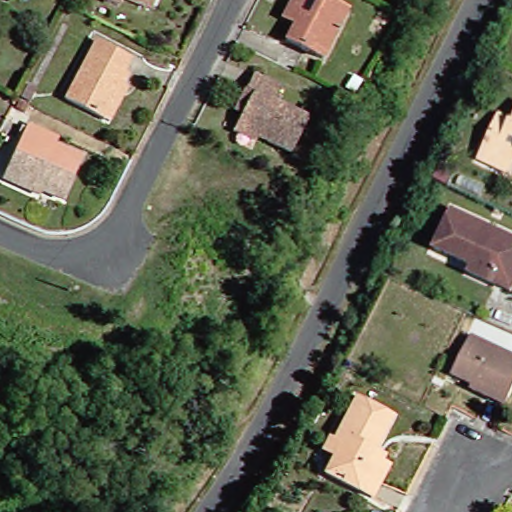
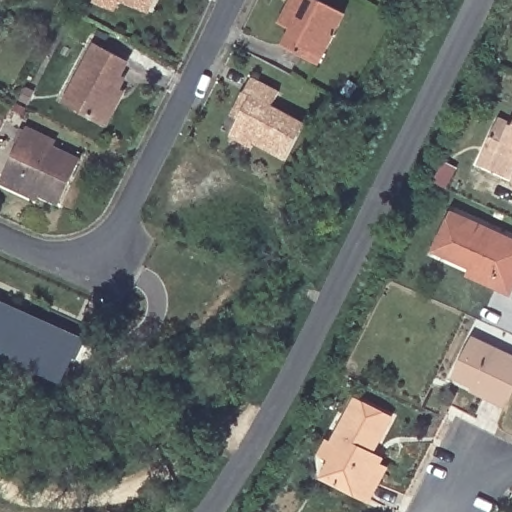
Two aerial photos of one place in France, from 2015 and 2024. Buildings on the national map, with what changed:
unchanged [(125,2),(121,0),(127,0),(125,2)]
unchanged [(155,5),(144,0),(157,0),(155,5)]
unchanged [(327,65),(294,47),(300,32),(292,26),(304,0),(316,0),(349,18),(327,65)]
unchanged [(119,124),(114,121),(79,101),(104,46),(135,63),(129,77),(133,81),(130,88),(135,92),(119,124)]
unchanged [(284,92),(277,109),(308,125),(293,156),(241,131),(249,112),(243,108),(250,94),(257,79),(284,92)]
unchanged [(489,165),(501,137),(508,121),(512,122),(512,174),(489,165)]
unchanged [(8,177),(12,166),(30,126),(59,141),(59,145),(84,159),(64,200),(29,182),(26,188),(8,177)]
unchanged [(448,165),(461,171),(452,190),(439,184),(448,165)]
unchanged [(474,276),(477,269),(439,252),(456,213),(512,238),(512,293),(474,276)]
new [(56,375),(0,347),(0,302),(74,340),(56,375)]
unchanged [(476,392),(479,387),(459,378),(476,340),(512,356),(512,401),(509,407),(476,392)]
new [(49,388),(0,363),(0,347),(56,375),(49,388)]
unchanged [(378,502),(372,498),(330,478),(339,461),(329,456),(335,444),(341,447),(364,401),(401,418),(383,455),(390,458),(387,466),(394,470),(378,502)]

